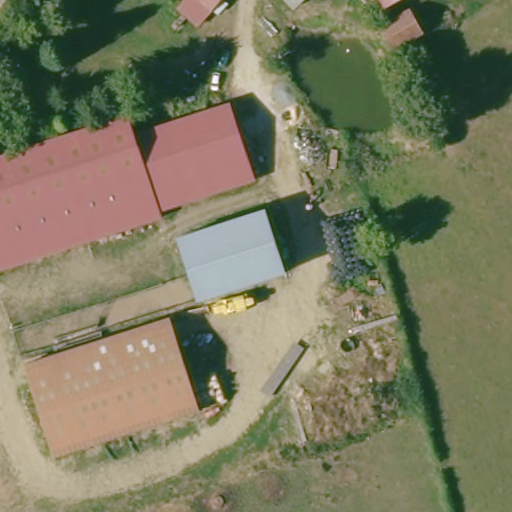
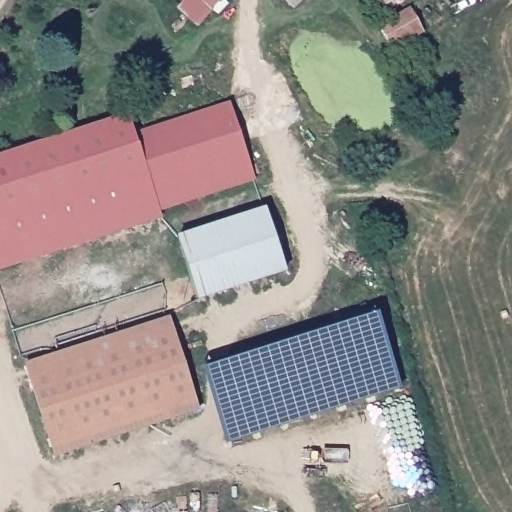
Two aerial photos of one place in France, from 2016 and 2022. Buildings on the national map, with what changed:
unchanged [(189,0),(230,0),(231,4),(221,16),(217,11),(209,25),(183,12),(189,0)]
unchanged [(295,5),(290,0),(301,0),(295,5)]
unchanged [(386,8),(382,0),(401,0),(386,8)]
unchanged [(407,5),(421,31),(390,49),(377,22),(407,5)]
unchanged [(259,184),(162,211),(164,218),(0,265),(0,156),(135,118),(140,137),(238,109),(259,184)]
unchanged [(268,210),(285,273),(197,298),(180,235),(268,210)]
new [(202,365),(372,310),(400,387),(226,445),(202,365)]
unchanged [(200,416),(55,455),(31,360),(176,320),(200,416)]

